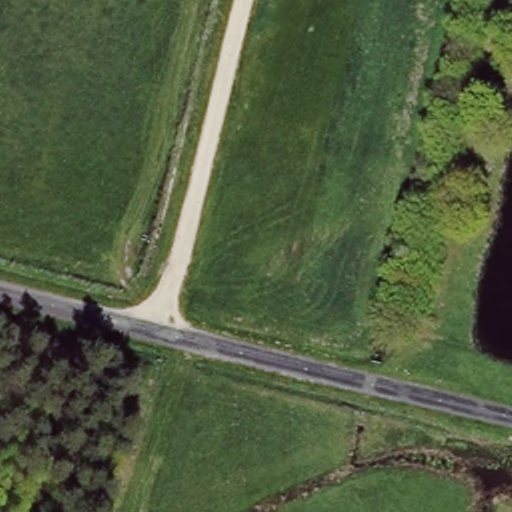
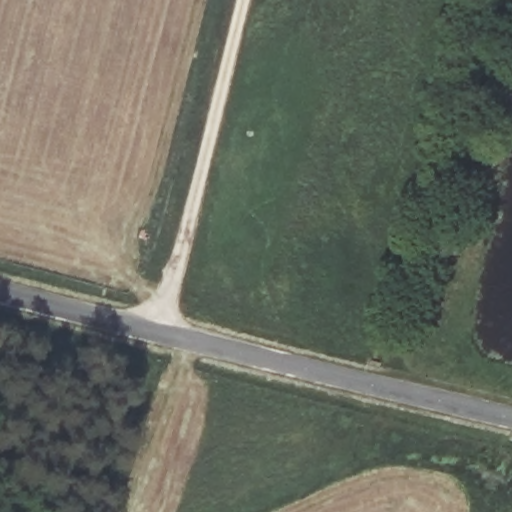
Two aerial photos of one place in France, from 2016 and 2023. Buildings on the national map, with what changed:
[]

